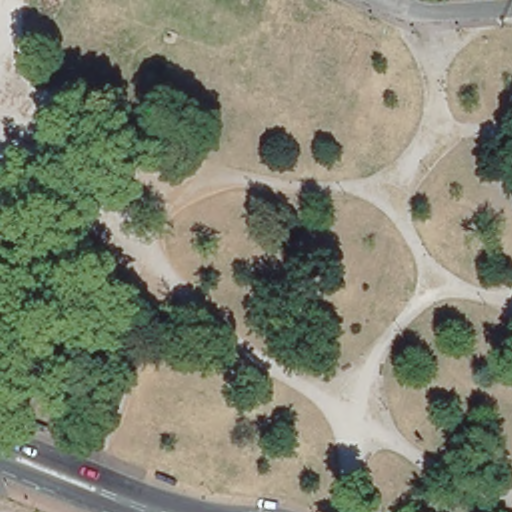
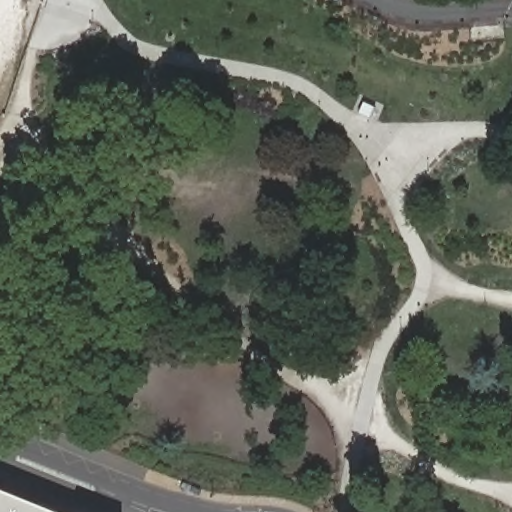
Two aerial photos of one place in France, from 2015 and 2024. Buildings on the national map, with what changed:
new [(47,512),(0,512),(0,493),(47,512)]

